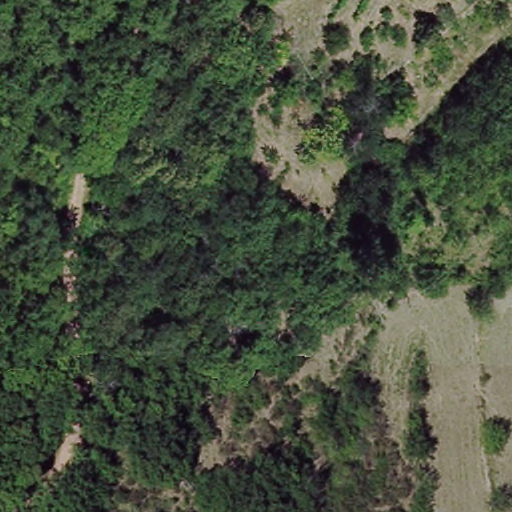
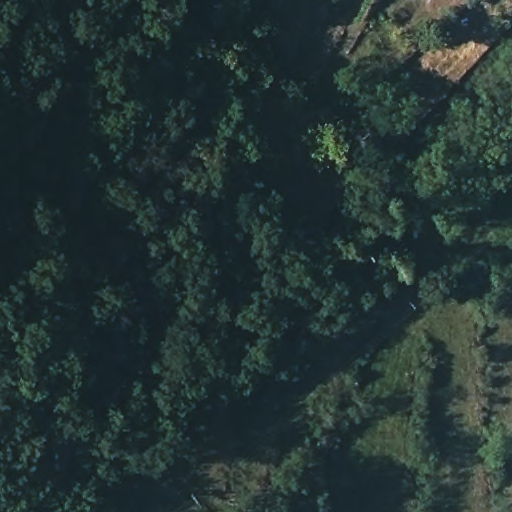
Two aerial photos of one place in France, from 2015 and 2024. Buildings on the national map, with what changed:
unchanged [(373,115),(358,128),(352,121),(366,107),(373,115)]

